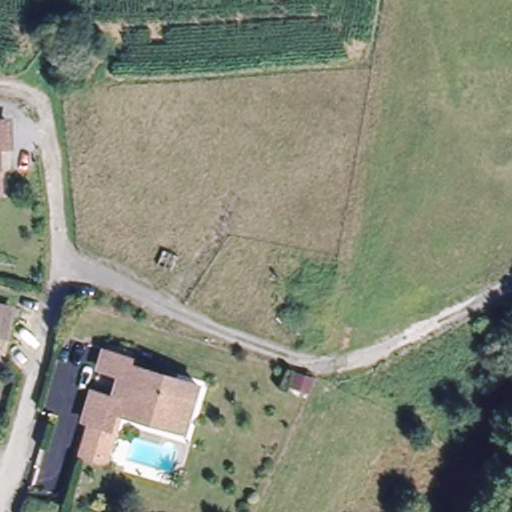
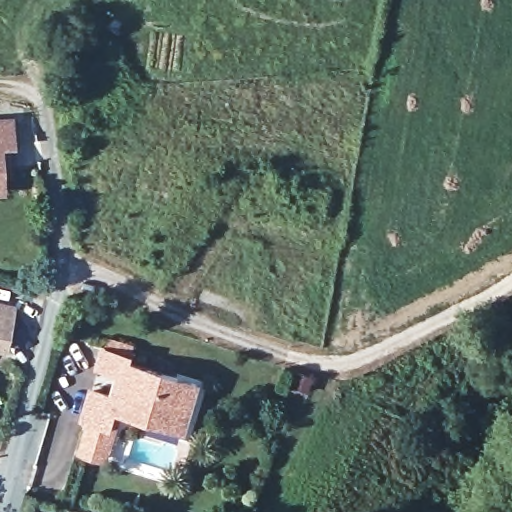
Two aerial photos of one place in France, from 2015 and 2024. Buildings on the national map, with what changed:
unchanged [(14,147),(1,148),(2,189),(0,190),(0,123),(12,122),(14,147)]
unchanged [(6,343),(0,342),(0,303),(16,305),(6,343)]
unchanged [(151,419),(118,409),(112,426),(103,455),(82,449),(91,419),(84,417),(94,387),(121,396),(127,373),(101,365),(107,347),(134,355),(132,362),(199,383),(187,419),(184,430),(151,419)]

